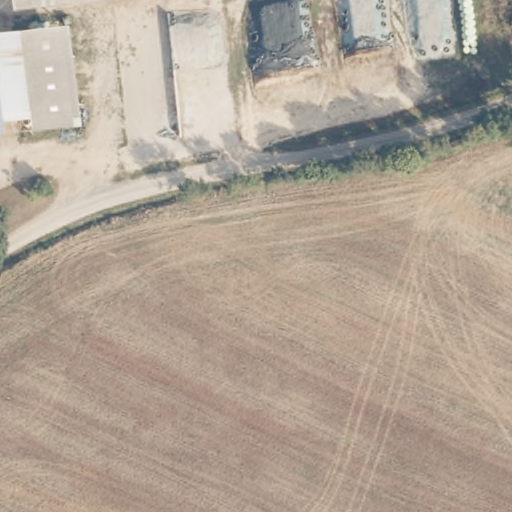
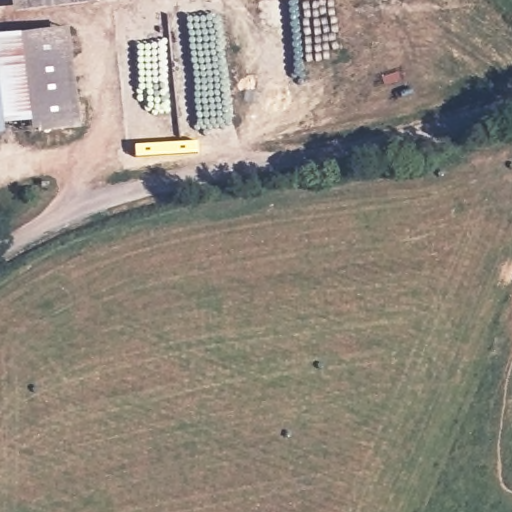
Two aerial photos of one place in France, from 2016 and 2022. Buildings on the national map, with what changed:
unchanged [(71,27),(77,129),(38,131),(0,134),(0,31),(51,28),(71,27)]

